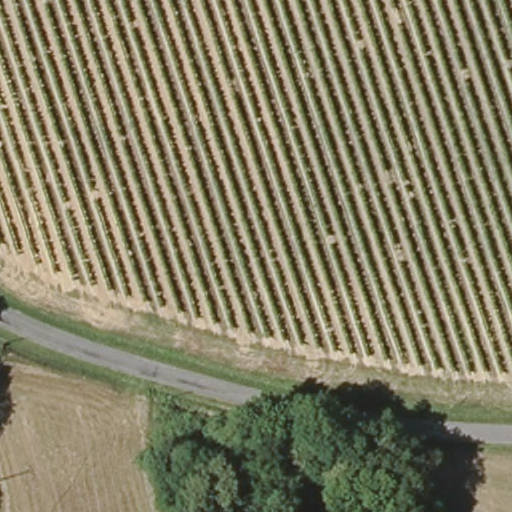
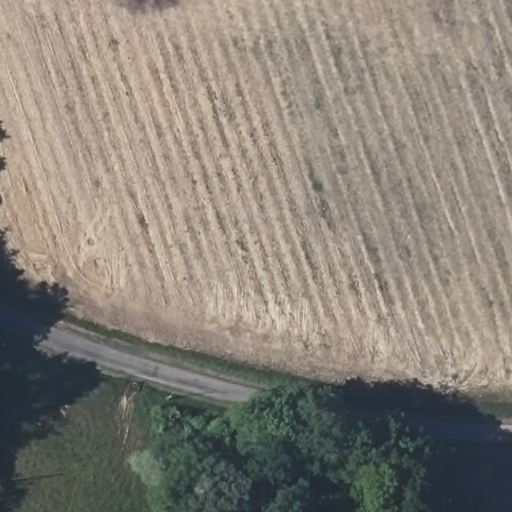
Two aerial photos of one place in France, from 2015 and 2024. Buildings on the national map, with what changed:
[]

